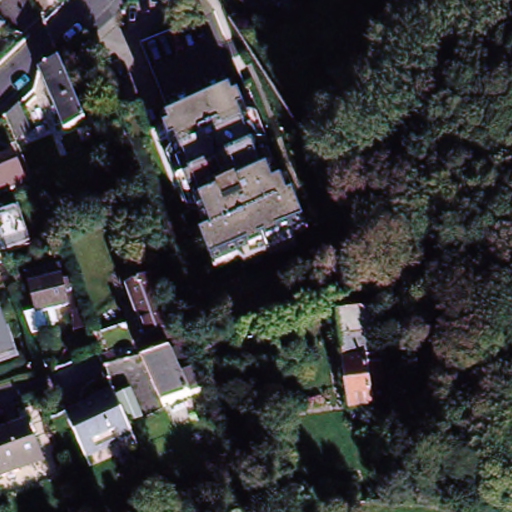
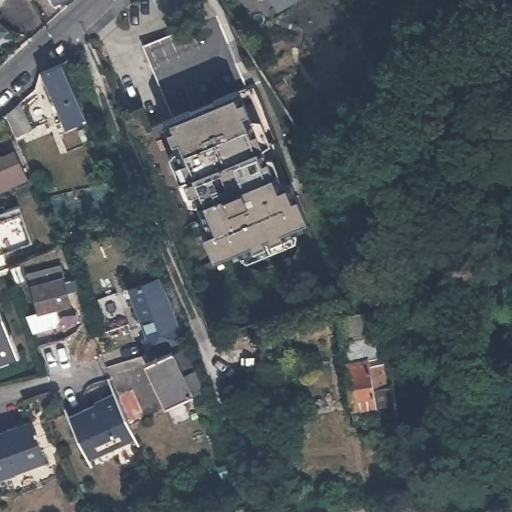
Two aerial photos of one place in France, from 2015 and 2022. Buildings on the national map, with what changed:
unchanged [(59,6),(56,0),(70,0),(59,6)]
unchanged [(278,10),(273,0),(297,0),(278,10)]
unchanged [(242,96),(229,101),(179,120),(150,47),(222,18),(251,92),(242,96)]
unchanged [(1,27),(0,28),(0,26),(1,27)]
unchanged [(94,88),(84,64),(98,52),(109,81),(94,88)]
unchanged [(71,130),(50,85),(65,79),(69,77),(89,122),(71,130)]
unchanged [(305,199),(316,228),(287,240),(290,249),(258,262),(255,253),(218,268),(200,224),(205,222),(198,205),(202,204),(181,151),(170,124),(179,120),(229,101),(242,96),(264,152),(275,178),(280,176),(285,190),(289,188),(299,185),(305,199)]
unchanged [(13,134),(3,111),(17,99),(29,127),(13,134)]
unchanged [(92,131),(93,133),(81,138),(77,128),(89,123),(92,131)]
unchanged [(14,183),(14,182),(0,188),(0,153),(12,148),(25,176),(31,174),(35,185),(18,192),(14,183)]
unchanged [(21,207),(32,241),(0,253),(0,215),(21,207)]
unchanged [(33,288),(29,274),(62,266),(65,282),(66,284),(73,283),(75,293),(68,294),(71,309),(39,315),(33,288)]
unchanged [(1,275),(0,276),(0,273),(1,275)]
unchanged [(147,363),(143,348),(152,345),(136,289),(155,285),(158,297),(166,295),(175,329),(181,327),(191,350),(147,363)]
unchanged [(353,405),(338,309),(369,304),(377,352),(382,352),(387,385),(392,385),(397,414),(387,415),(385,402),(376,402),(378,414),(354,417),(353,405)]
unchanged [(17,356),(0,362),(0,305),(17,356)]
unchanged [(89,314),(90,320),(78,324),(76,317),(89,314)]
unchanged [(222,352),(224,356),(213,359),(206,343),(218,339),(219,343),(222,342),(225,351),(222,352)]
unchanged [(152,371),(159,368),(176,361),(182,374),(195,369),(204,391),(173,403),(167,405),(152,371)]
unchanged [(72,416),(121,398),(119,392),(132,387),(142,416),(129,420),(130,422),(137,442),(88,460),(72,416)]
unchanged [(0,479),(0,434),(32,424),(45,465),(0,479)]
unchanged [(398,504),(399,496),(404,496),(405,505),(398,504)]

